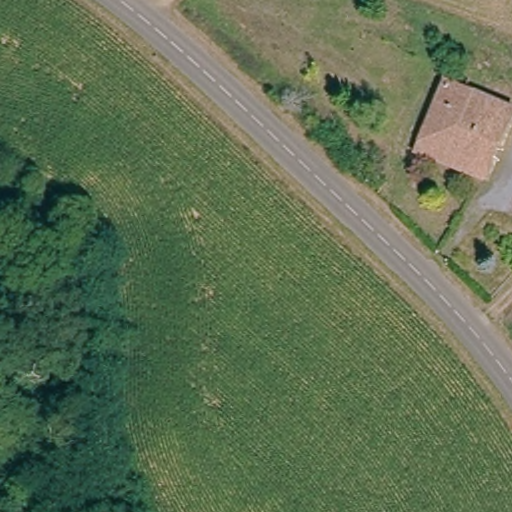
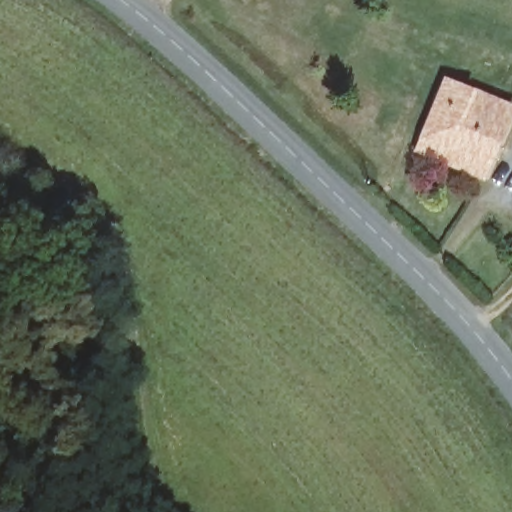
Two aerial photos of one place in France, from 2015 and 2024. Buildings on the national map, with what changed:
unchanged [(417,130),(423,132),(444,78),(498,99),(511,105),(503,126),(497,125),(487,151),(491,154),(482,179),(410,149),(417,130)]

